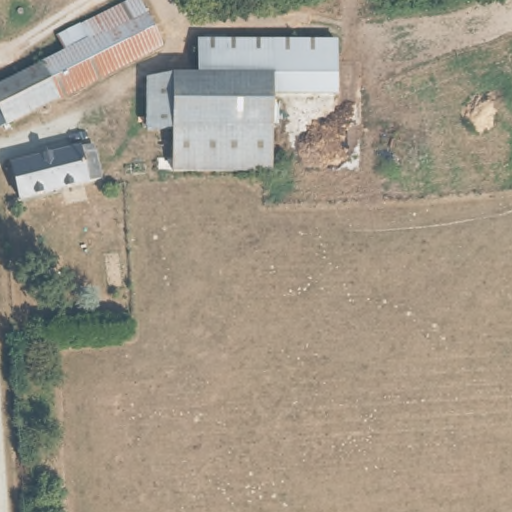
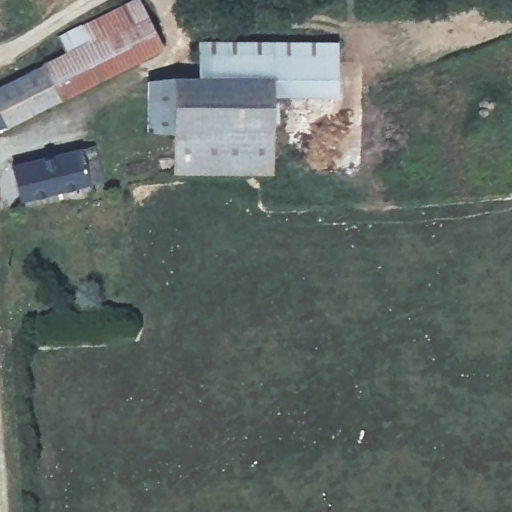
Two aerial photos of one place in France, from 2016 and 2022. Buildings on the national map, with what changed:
unchanged [(66,52),(59,36),(86,22),(116,7),(130,0),(142,0),(162,41),(0,125),(0,86),(66,52)]
unchanged [(152,146),(152,112),(152,90),(203,86),(202,50),(214,49),(336,43),(340,91),(275,94),(276,136),(216,141),(182,143),(152,146)]
unchanged [(276,136),(277,177),(217,180),(216,141),(276,136)]
unchanged [(217,180),(184,182),(182,143),(216,141),(217,180)]
unchanged [(91,190),(12,207),(4,172),(83,155),(91,190)]

